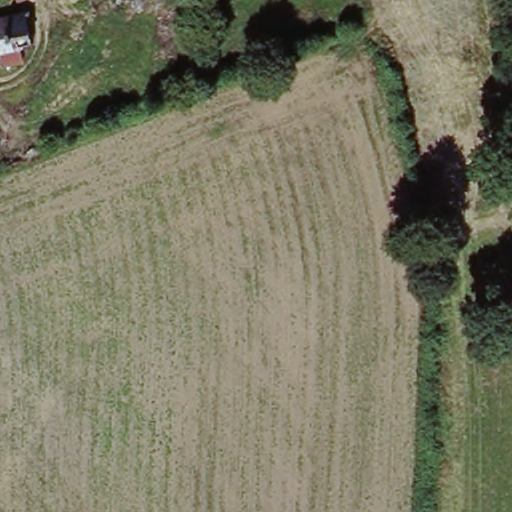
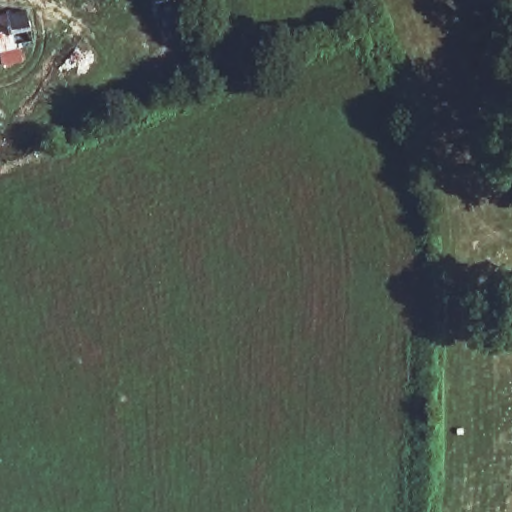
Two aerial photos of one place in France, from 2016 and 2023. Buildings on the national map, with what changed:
unchanged [(14,22),(36,17),(41,46),(19,50),(0,54),(0,25),(14,22)]

